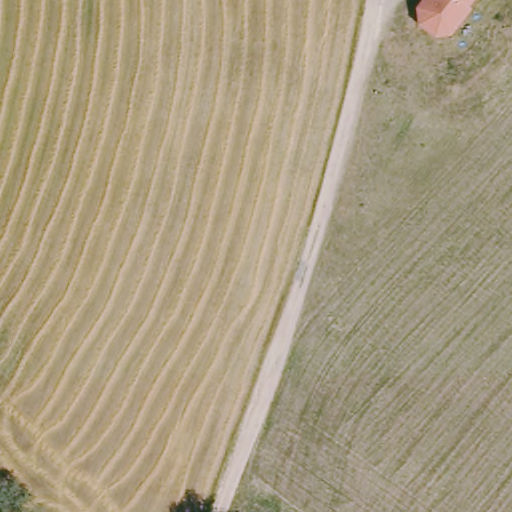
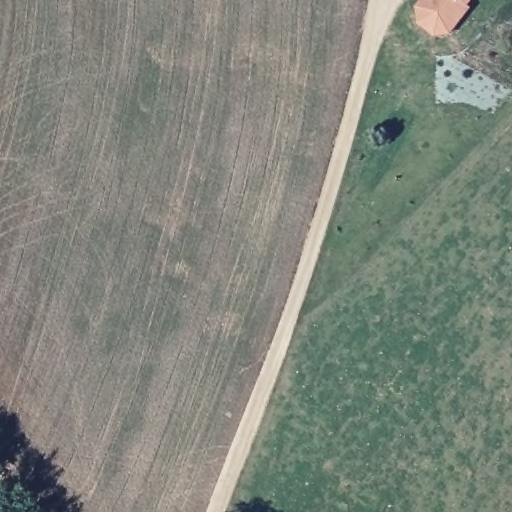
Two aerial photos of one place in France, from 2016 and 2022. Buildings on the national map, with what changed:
unchanged [(470,7),(448,32),(432,33),(417,20),(417,3),(419,0),(471,0),(467,5),(470,7)]

